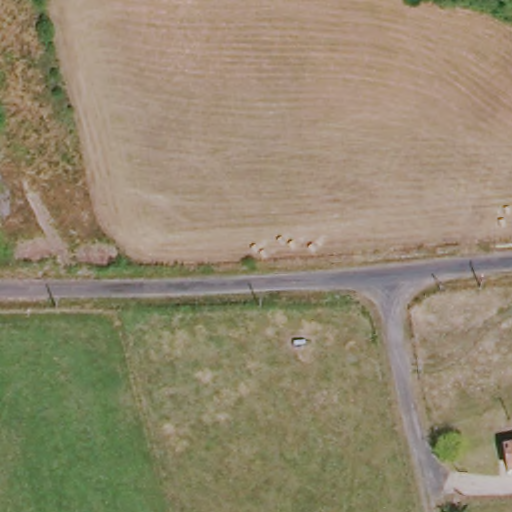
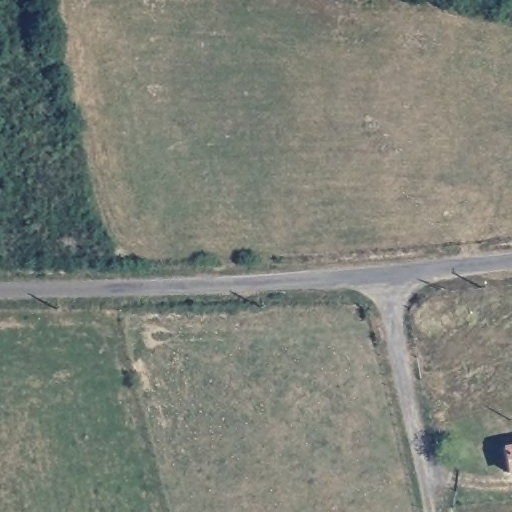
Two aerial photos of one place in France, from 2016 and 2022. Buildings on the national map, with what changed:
unchanged [(511,450),(512,450),(512,461),(511,450)]

